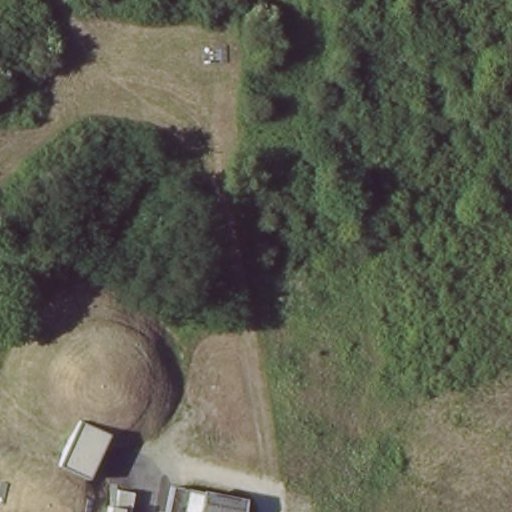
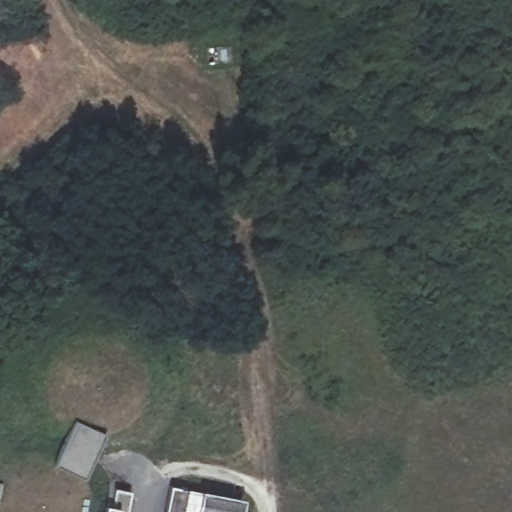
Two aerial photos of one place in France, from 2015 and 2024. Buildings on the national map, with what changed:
unchanged [(169,483),(244,497),(242,512),(163,512),(169,483)]

